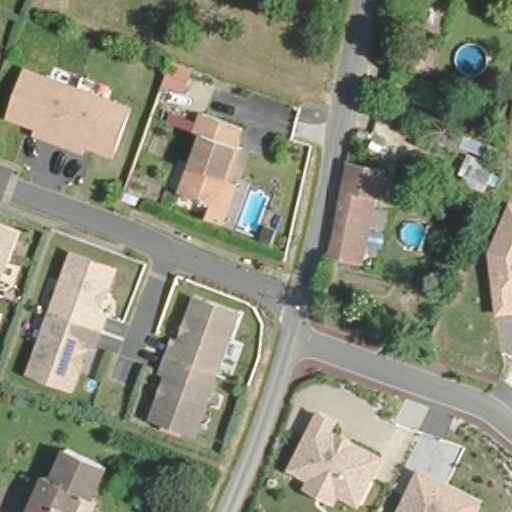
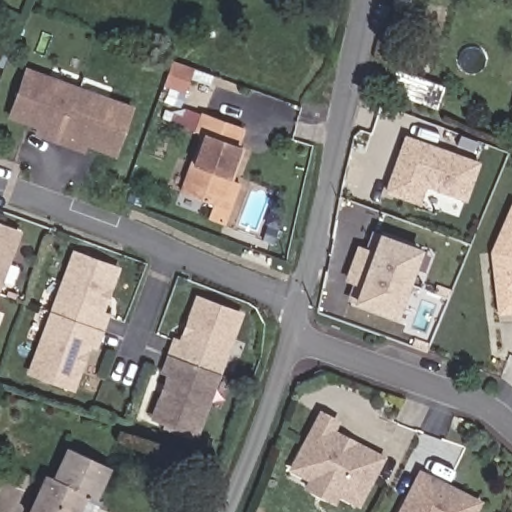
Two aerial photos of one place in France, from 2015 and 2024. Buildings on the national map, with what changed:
unchanged [(187,93),(164,85),(172,60),(196,68),(187,93)]
unchanged [(117,157),(89,147),(86,153),(35,136),(37,129),(8,118),(26,67),(135,106),(117,157)]
unchanged [(408,74),(450,88),(445,107),(402,92),(408,74)]
unchanged [(238,212),(219,212),(221,192),(182,187),(193,127),(187,126),(190,107),(231,112),(228,127),(239,130),(234,163),(244,165),(238,212)]
new [(469,196),(432,184),(425,203),(392,192),(408,140),(480,162),(469,196)]
demolished [(383,168),(377,193),(370,192),(357,255),(328,250),(349,160),(383,168)]
unchanged [(497,316),(488,252),(512,199),(512,314),(497,316)]
unchanged [(0,227),(21,235),(0,296),(0,227)]
new [(366,250),(372,233),(379,236),(373,252),(366,250)]
new [(358,247),(373,252),(379,236),(424,249),(401,316),(357,301),(363,283),(348,278),(358,247)]
unchanged [(96,346),(91,344),(75,389),(32,375),(73,254),(116,268),(101,313),(106,315),(96,346)]
new [(363,283),(357,301),(351,299),(357,281),(363,283)]
unchanged [(199,431),(156,417),(172,371),(166,370),(177,339),(182,341),(197,296),(240,310),(199,431)]
unchanged [(360,507),(341,497),(335,506),(303,491),(307,481),(287,468),(319,409),(342,421),(336,431),(387,457),(360,507)]
unchanged [(91,488),(80,512),(41,512),(33,508),(50,470),(60,473),(74,440),(115,459),(101,492),(91,488)]
unchanged [(478,512),(395,512),(418,467),(483,501),(478,512)]
unchanged [(30,511),(32,512),(30,512),(30,511)]

